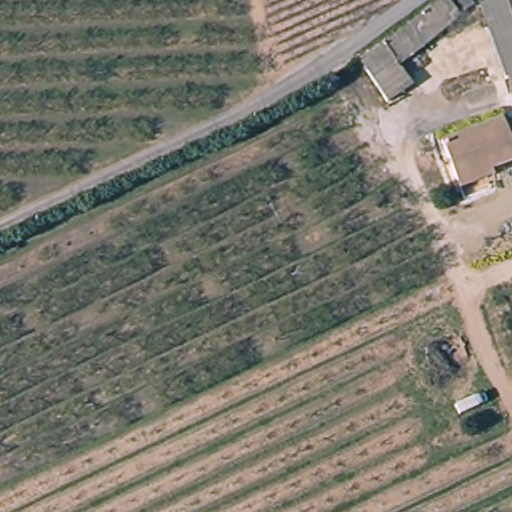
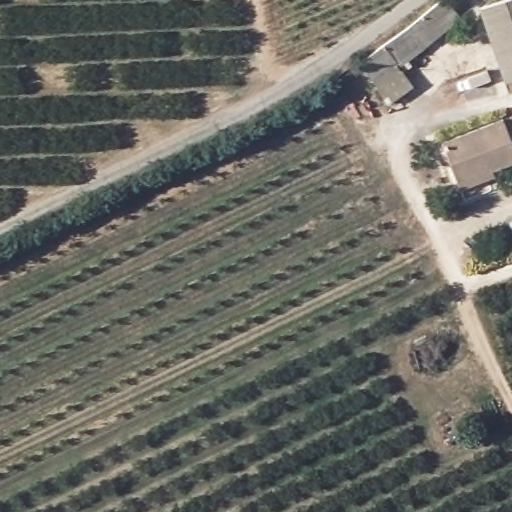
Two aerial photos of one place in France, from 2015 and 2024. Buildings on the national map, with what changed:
unchanged [(439,0),(447,0),(460,20),(398,66),(412,86),(387,102),(360,62),(439,0)]
unchanged [(477,8),(502,0),(512,0),(512,79),(500,82),(477,8)]
unchanged [(501,125),(512,145),(512,166),(505,169),(492,130),(501,125)]
unchanged [(505,169),(461,192),(442,158),(492,130),(505,169)]

